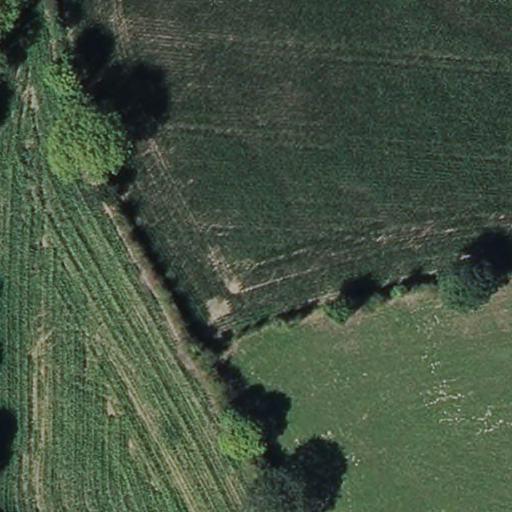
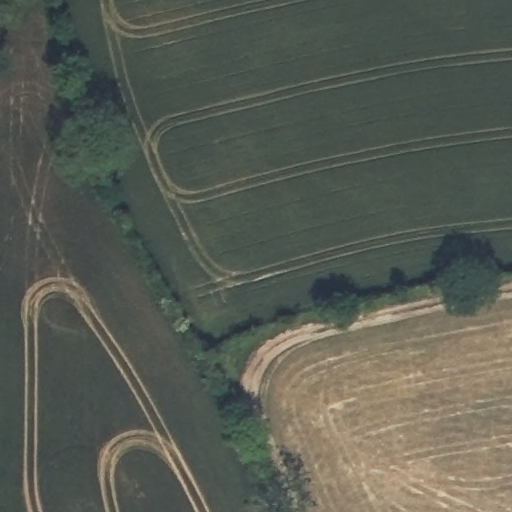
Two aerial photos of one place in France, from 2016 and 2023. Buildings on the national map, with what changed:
[]

